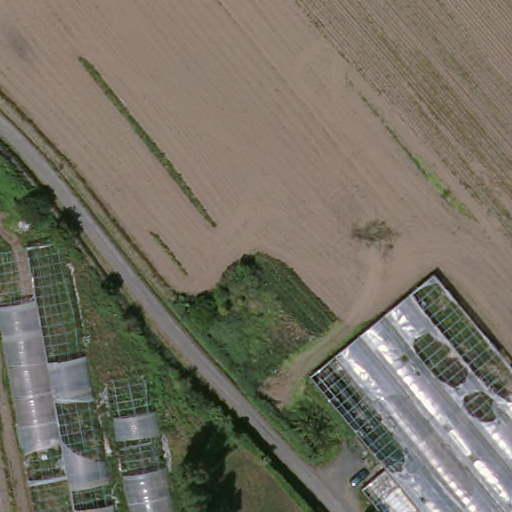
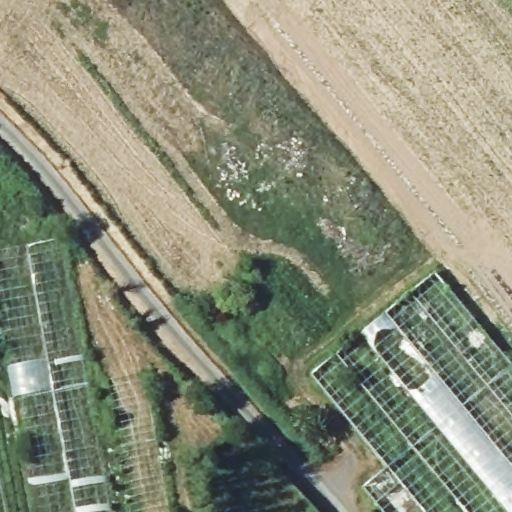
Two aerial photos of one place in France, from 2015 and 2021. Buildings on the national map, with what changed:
unchanged [(0,322),(0,255),(61,243),(112,512),(34,512),(0,322)]
unchanged [(512,377),(512,512),(376,512),(360,493),(382,472),(308,380),(430,276),(512,377)]
unchanged [(146,379),(171,512),(131,512),(108,385),(146,379)]
unchanged [(0,459),(10,512),(0,512),(0,459)]

